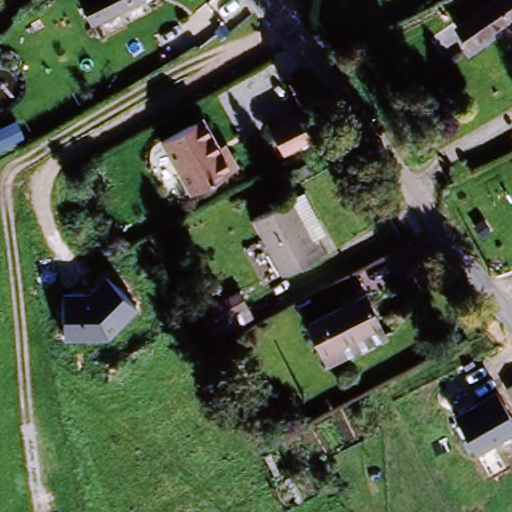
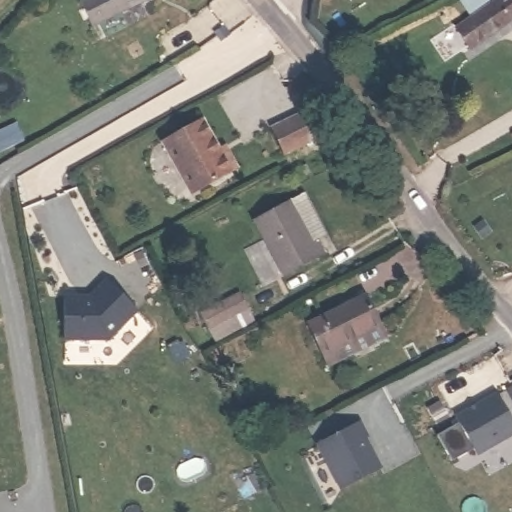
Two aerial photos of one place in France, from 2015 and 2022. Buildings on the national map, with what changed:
unchanged [(64,4),(85,0),(149,0),(128,15),(72,28),(64,4)]
unchanged [(452,25),(489,0),(512,0),(512,11),(463,42),(452,25)]
unchanged [(279,150),(271,127),(299,116),(308,140),(279,150)]
unchanged [(229,171),(220,175),(183,190),(161,140),(198,123),(210,151),(219,147),(229,171)]
unchanged [(314,233),(316,250),(275,267),(253,210),(304,190),(316,221),(303,226),(306,235),(314,233)]
unchanged [(88,297),(107,279),(138,311),(108,340),(63,339),(64,296),(88,297)]
unchanged [(253,322),(210,339),(199,309),(241,293),(253,322)]
unchanged [(304,315),(319,310),(364,294),(375,320),(381,335),(336,353),(321,359),(315,343),(304,315)]
unchanged [(496,393),(512,422),(512,434),(478,452),(457,413),(496,393)]
new [(313,443),(326,436),(359,418),(367,434),(364,436),(381,466),(351,482),(339,488),(313,443)]

